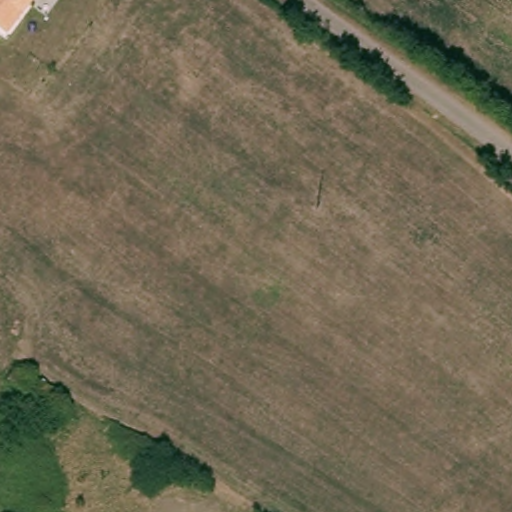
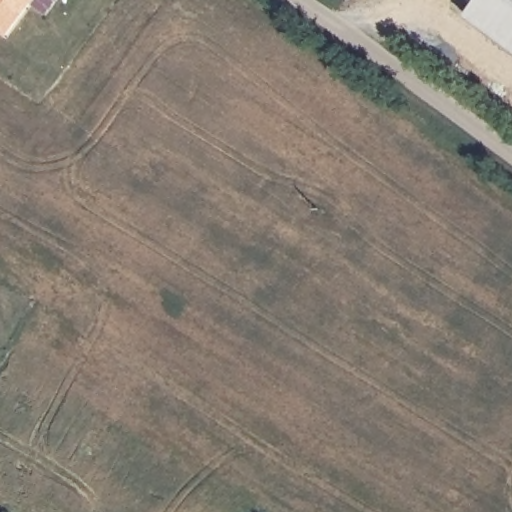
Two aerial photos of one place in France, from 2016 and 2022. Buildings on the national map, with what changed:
unchanged [(0,32),(0,0),(33,0),(7,37),(0,32)]
new [(476,0),(512,0),(512,51),(465,16),(476,0)]

